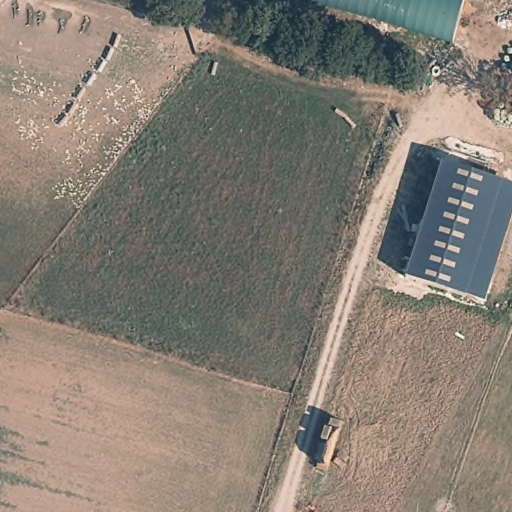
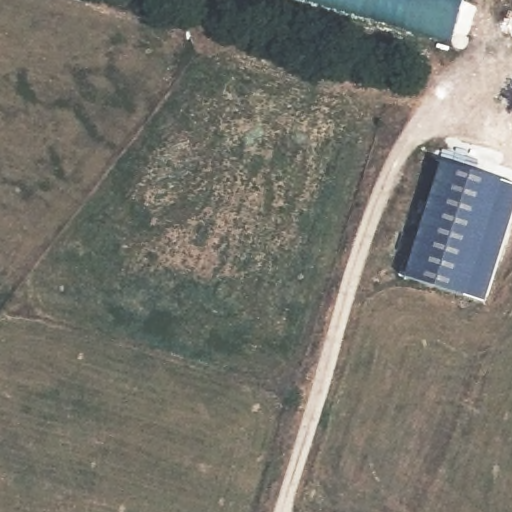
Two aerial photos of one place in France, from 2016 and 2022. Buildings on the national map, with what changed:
unchanged [(330,0),(464,0),(455,34),(330,0)]
unchanged [(512,187),(512,210),(483,303),(406,277),(440,164),(512,187)]

